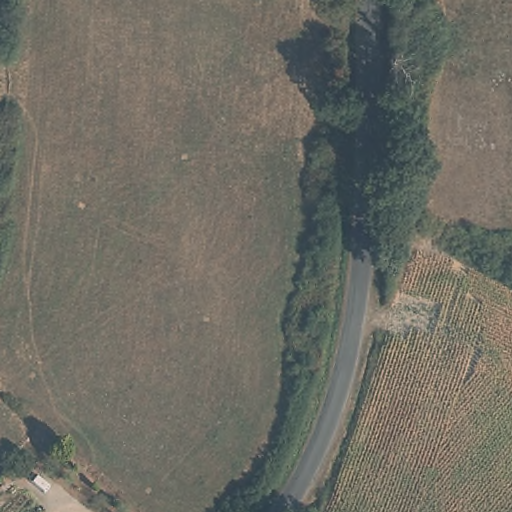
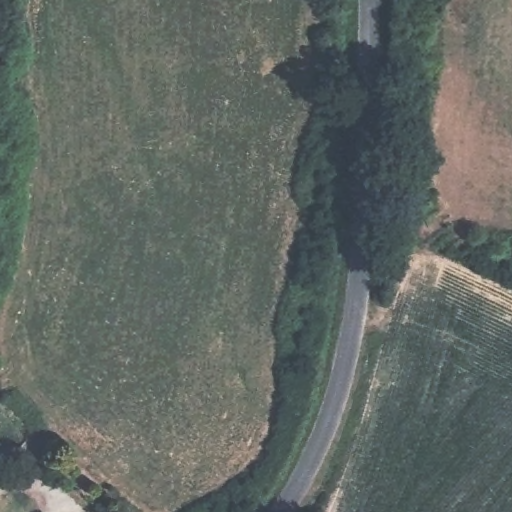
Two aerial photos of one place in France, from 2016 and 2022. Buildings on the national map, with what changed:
[]

